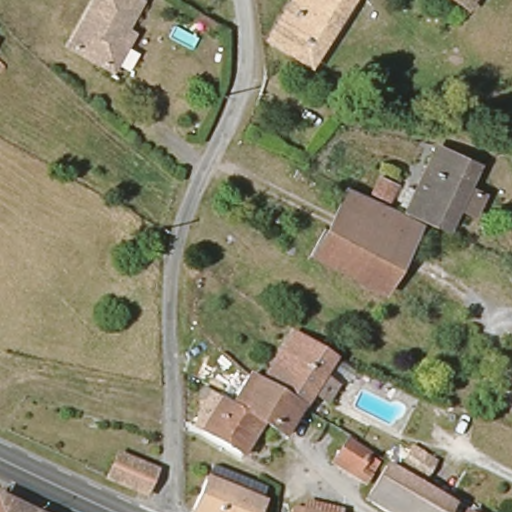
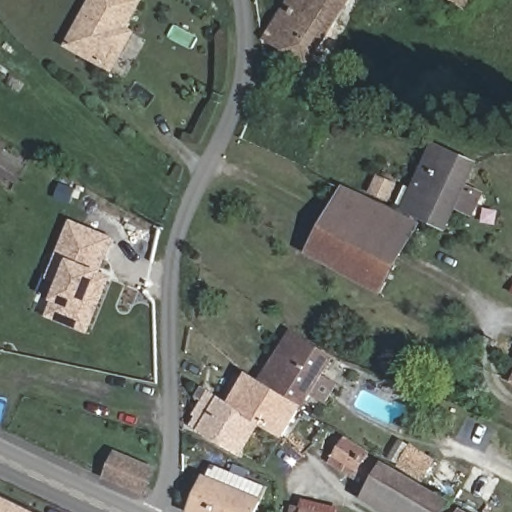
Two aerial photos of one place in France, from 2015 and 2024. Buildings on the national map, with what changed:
unchanged [(125,42),(110,69),(66,45),(93,0),(136,0),(121,26),(130,32),(125,42)]
unchanged [(277,44),(265,37),(289,0),(306,0),(277,44)]
unchanged [(308,64),(277,44),(306,0),(349,0),(308,64)]
unchanged [(467,4),(461,0),(471,0),(467,4)]
unchanged [(474,166),(444,230),(404,211),(434,147),(474,166)]
unchanged [(421,225),(382,294),(309,255),(344,191),(402,216),(421,225)]
new [(59,283),(46,278),(69,220),(116,238),(101,274),(112,278),(88,336),(44,317),(45,314),(50,316),(60,291),(59,283)]
unchanged [(296,410),(262,389),(254,384),(290,331),(329,360),(296,410)]
unchanged [(312,420),(296,410),(329,360),(348,367),(312,420)]
unchanged [(262,389),(296,410),(277,440),(258,429),(222,407),(242,376),(254,384),(262,389)]
demolished [(9,382),(0,399),(0,378),(4,379),(9,382)]
unchanged [(258,429),(239,459),(197,431),(214,402),(222,407),(258,429)]
unchanged [(350,444),(373,458),(360,482),(328,461),(341,438),(350,444)]
unchanged [(118,451),(156,467),(146,495),(104,477),(107,471),(118,451)]
unchanged [(449,512),(379,512),(365,504),(385,469),(451,508),(449,512)]
unchanged [(269,500),(264,512),(195,512),(211,474),(269,500)]
unchanged [(0,512),(0,494),(38,512),(0,512)]
unchanged [(308,512),(310,504),(340,512),(308,512)]

